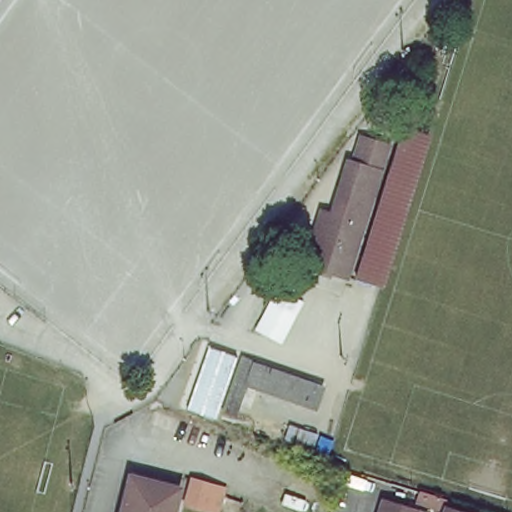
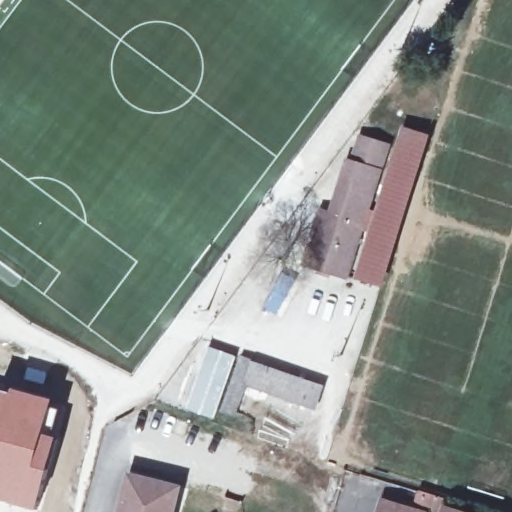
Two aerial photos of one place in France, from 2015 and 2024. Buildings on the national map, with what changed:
unchanged [(353,279),(400,127),(425,135),(378,287),(353,279)]
unchanged [(343,276),(302,264),(317,212),(318,211),(332,215),(345,174),(355,137),(368,141),(382,145),(343,276)]
unchanged [(211,409),(197,403),(182,397),(206,341),(223,347),(235,352),(211,409)]
unchanged [(238,353),(312,383),(305,403),(242,380),(238,391),(243,393),(237,408),(231,407),(228,416),(215,411),(238,353)]
new [(13,390),(14,387),(56,397),(47,432),(60,435),(38,511),(0,500),(0,387),(13,390)]
unchanged [(132,476),(177,487),(171,512),(124,512),(132,476)]
unchanged [(192,476),(225,485),(217,510),(184,501),(192,476)]
unchanged [(383,496),(415,506),(425,508),(424,512),(379,512),(383,496)]
unchanged [(446,502),(482,512),(443,512),(446,502)]

